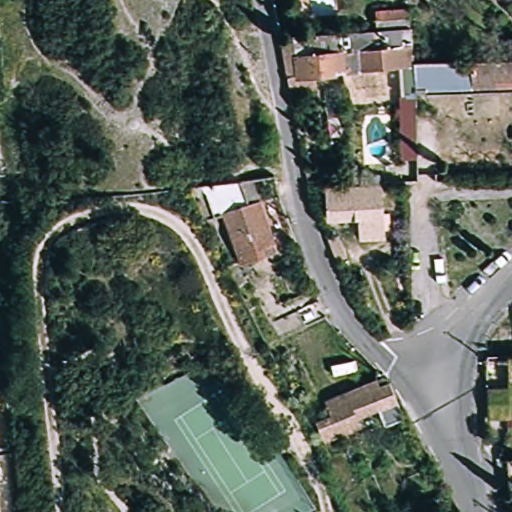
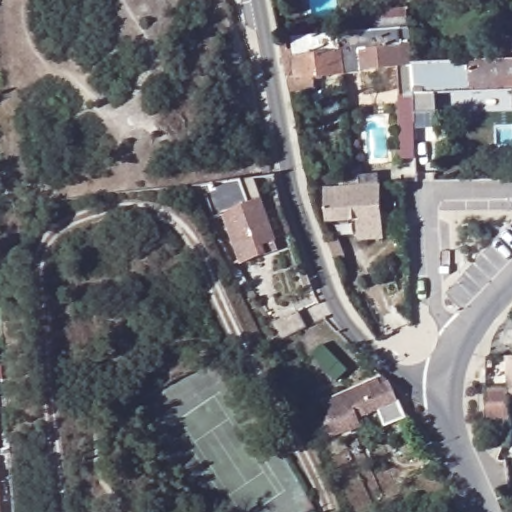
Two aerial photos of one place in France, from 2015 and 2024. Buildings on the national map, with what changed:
unchanged [(406,5),(407,21),(375,23),(375,8),(406,5)]
unchanged [(341,29),(409,23),(413,58),(415,83),(415,88),(401,90),(400,60),(345,67),(341,29)]
unchanged [(341,29),(345,67),(313,71),(315,83),(290,86),(280,33),(341,29)]
unchanged [(512,32),(512,47),(511,47),(510,33),(512,32)]
unchanged [(415,83),(413,58),(471,56),(512,55),(512,85),(415,88),(415,83)]
unchanged [(283,248),(246,261),(228,210),(219,213),(208,180),(257,175),(283,248)]
unchanged [(340,177),(355,177),(379,175),(380,184),(355,186),(341,187),(340,177)]
unchanged [(380,189),(381,215),(388,215),(389,229),(382,230),(383,237),(361,239),(360,219),(329,221),(327,192),(380,189)]
unchanged [(307,328),(292,335),(281,340),(271,324),(298,311),(307,328)]
unchanged [(489,413),(490,386),(492,348),(512,347),(512,414),(489,413)]
unchanged [(380,383),(388,379),(389,379),(397,398),(404,413),(385,421),(378,405),(357,414),(360,422),(325,437),(318,418),(330,413),(323,398),(376,375),(380,383)]

